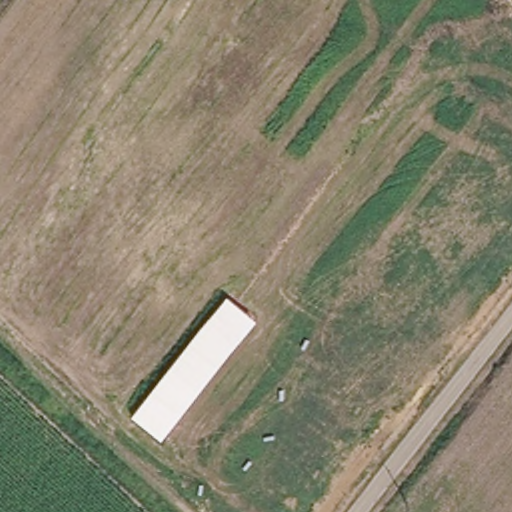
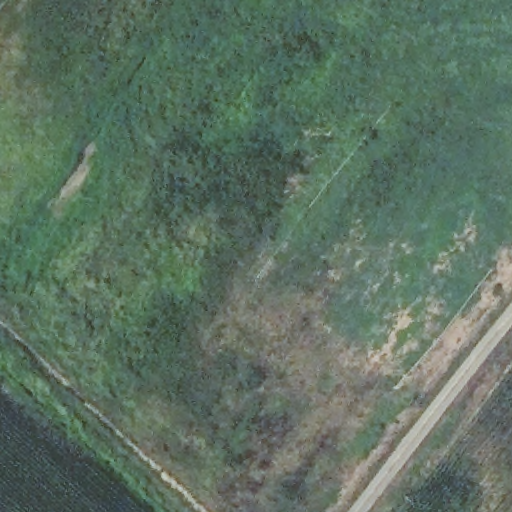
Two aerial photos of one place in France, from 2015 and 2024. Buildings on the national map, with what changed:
demolished [(130,416),(226,297),(256,320),(160,440),(130,416)]

